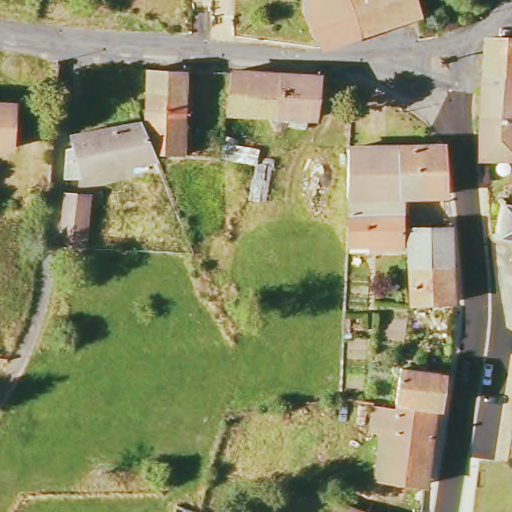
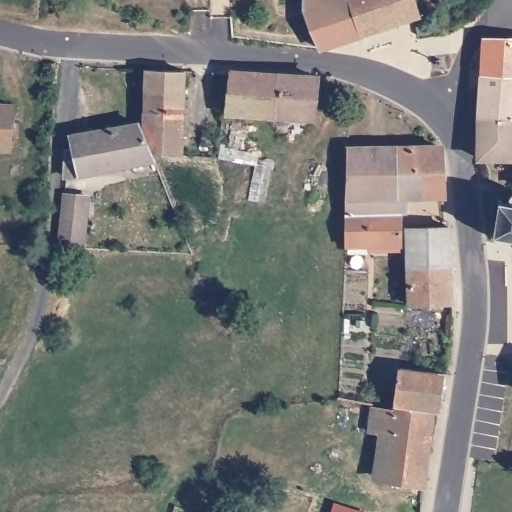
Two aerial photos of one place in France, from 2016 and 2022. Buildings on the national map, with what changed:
unchanged [(312,10),(312,0),(418,0),(424,17),(331,55),(312,10)]
unchanged [(491,42),(512,43),(512,80),(488,79),(491,42)]
unchanged [(151,137),(154,72),(191,74),(190,157),(159,155),(151,137)]
unchanged [(235,75),(321,81),(318,120),(230,115),(235,75)]
unchanged [(488,79),(512,80),(512,122),(485,120),(488,79)]
unchanged [(17,102),(15,146),(0,146),(0,102),(17,102)]
unchanged [(482,160),(485,120),(512,122),(512,161),(506,161),(482,160)]
unchanged [(89,177),(72,174),(75,152),(80,151),(79,135),(146,125),(151,137),(159,155),(163,165),(89,177)]
unchanged [(352,200),(351,152),(445,150),(445,194),(405,197),(405,244),(350,245),(352,200)]
unchanged [(65,197),(90,200),(83,251),(60,249),(65,197)]
unchanged [(500,200),(506,205),(512,200),(512,238),(506,235),(499,241),(495,236),(500,231),(501,209),(496,206),(500,200)]
unchanged [(410,305),(412,230),(451,229),(453,305),(410,305)]
unchanged [(431,495),(387,487),(397,442),(375,437),(378,413),(401,416),(406,376),(447,384),(431,495)]
unchanged [(345,512),(341,512),(341,511),(345,512)]

